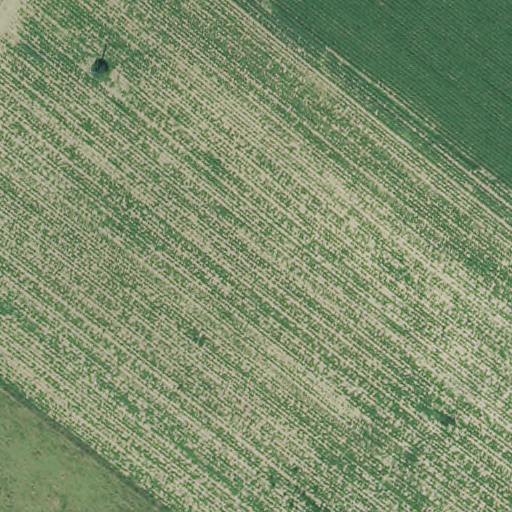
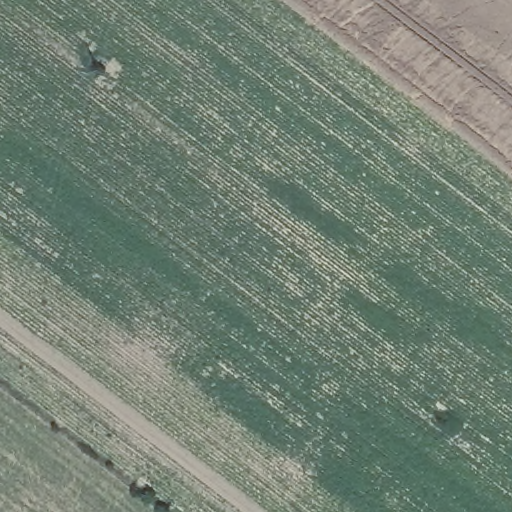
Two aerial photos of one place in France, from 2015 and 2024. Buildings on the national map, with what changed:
[]

